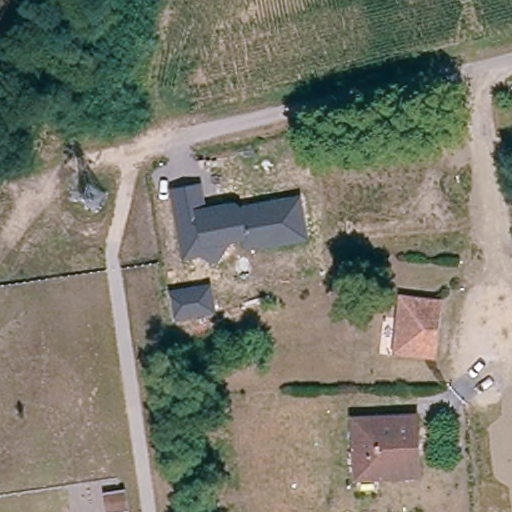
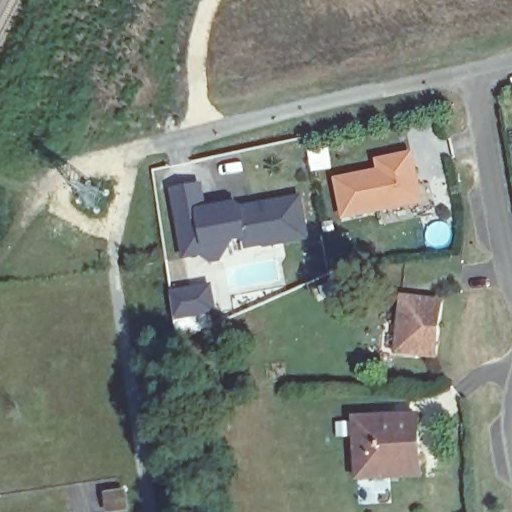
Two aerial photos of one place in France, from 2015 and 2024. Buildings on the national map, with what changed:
new [(413,150),(422,201),(343,218),(334,177),(377,169),(375,159),(413,150)]
unchanged [(170,189),(202,183),(207,207),(241,201),(242,205),(301,194),(310,240),(247,250),(245,240),(231,243),(220,262),(212,263),(202,256),(183,259),(170,189)]
demolished [(383,188),(380,213),(343,208),(347,183),(383,188)]
unchanged [(176,320),(172,289),(212,283),(217,313),(176,320)]
unchanged [(394,352),(402,297),(440,302),(432,358),(394,352)]
unchanged [(417,416),(419,477),(357,480),(353,419),(417,416)]
unchanged [(112,512),(109,512),(107,496),(124,494),(126,510),(112,512)]

